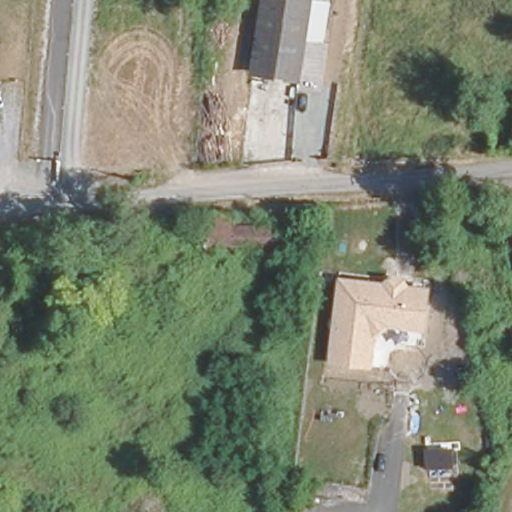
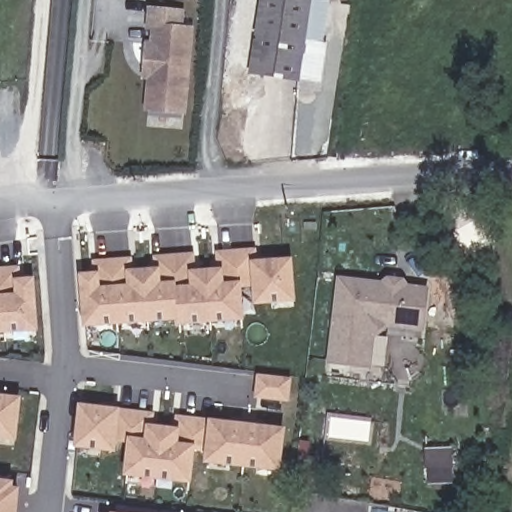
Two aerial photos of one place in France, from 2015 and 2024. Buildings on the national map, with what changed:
unchanged [(293,75),(246,67),(257,0),(327,0),(320,40),(313,79),(293,75)]
new [(184,26),(194,27),(185,116),(144,112),(146,80),(141,80),(145,40),(149,41),(150,31),(144,30),(147,6),(185,9),(184,26)]
demolished [(205,221),(289,223),(289,248),(204,247),(205,221)]
new [(96,276),(94,260),(133,259),(134,273),(154,270),(153,257),(195,255),(198,272),(217,269),(215,252),(256,250),(257,263),(293,262),(297,305),(254,307),(250,290),(242,291),(244,325),(179,328),(178,322),(83,328),(79,277),(96,276)]
new [(21,280),(35,278),(39,333),(0,336),(0,269),(21,268),(21,280)]
unchanged [(424,332),(389,327),(388,330),(376,334),(373,370),(328,364),(339,277),(383,283),(388,277),(404,280),(409,286),(430,288),(424,332)]
new [(292,381),(289,404),(254,401),(256,377),(292,381)]
new [(18,448),(0,445),(0,397),(21,400),(18,448)]
new [(153,413),(153,427),(172,428),(174,417),(284,429),(280,473),(203,466),(204,454),(194,453),(192,485),(122,480),(124,446),(115,446),(115,455),(73,451),(78,405),(153,413)]
new [(13,490),(20,490),(18,512),(0,512),(0,482),(12,483),(13,490)]

